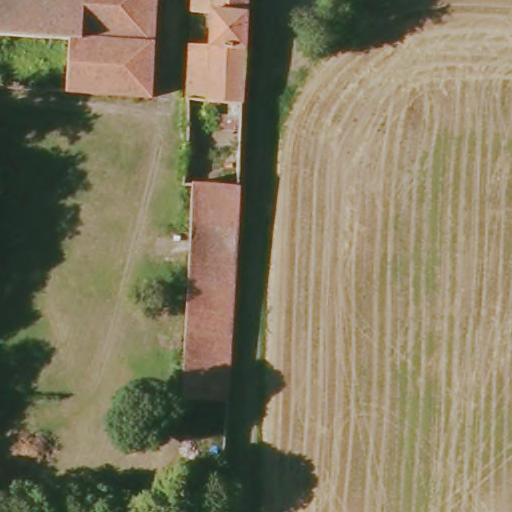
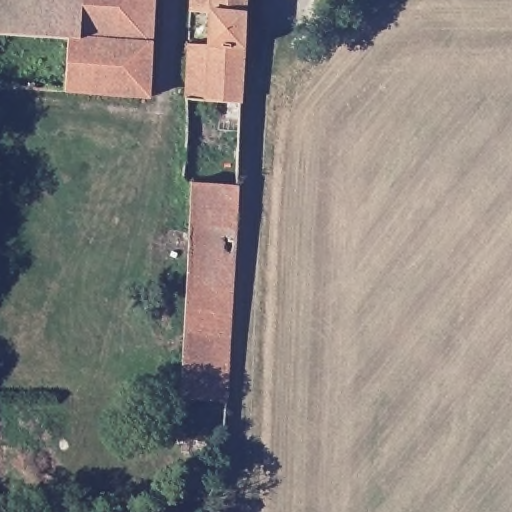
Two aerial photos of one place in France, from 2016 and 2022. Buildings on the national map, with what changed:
unchanged [(67,40),(0,36),(0,0),(153,0),(150,42),(147,100),(62,94),(67,40)]
unchanged [(186,0),(242,0),(236,105),(182,102),(185,46),(199,45),(200,12),(185,11),(186,0)]
unchanged [(195,192),(242,194),(232,410),(186,408),(195,192)]

